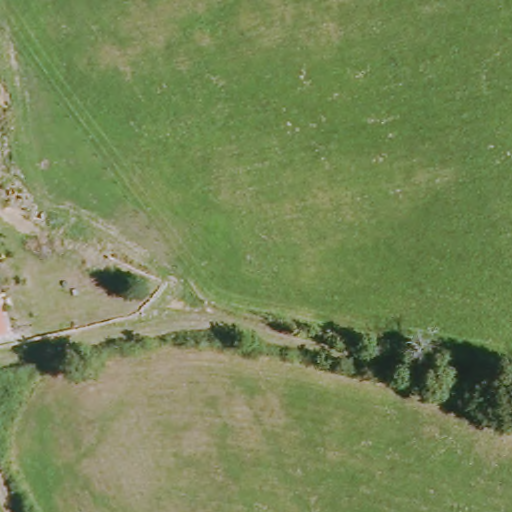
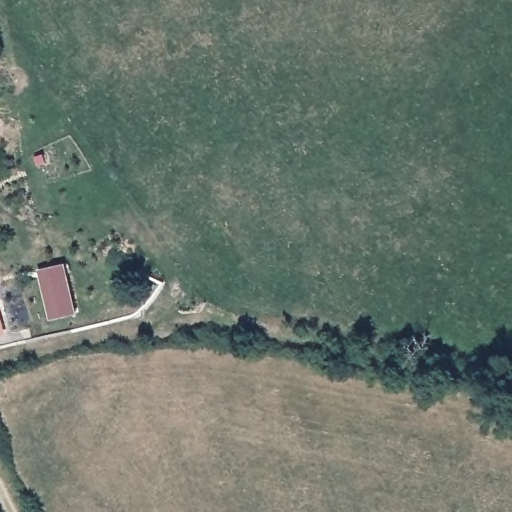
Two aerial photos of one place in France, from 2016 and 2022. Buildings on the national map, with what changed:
new [(39,270),(66,264),(77,314),(50,318),(39,270)]
unchanged [(0,339),(0,313),(7,337),(0,339)]

